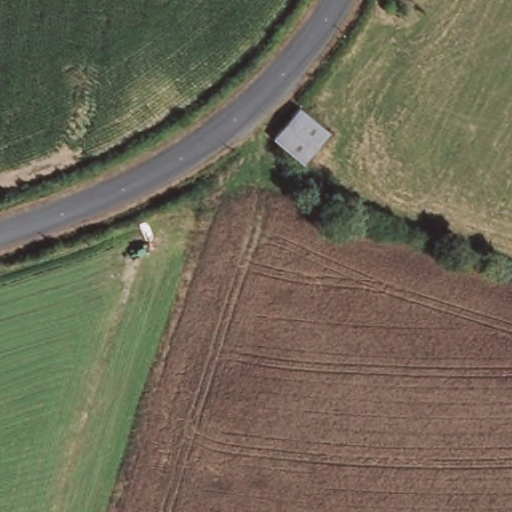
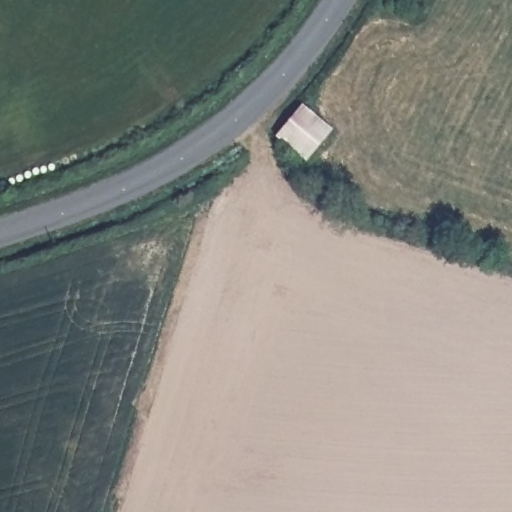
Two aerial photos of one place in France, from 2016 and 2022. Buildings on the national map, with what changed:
unchanged [(303,110),(329,139),(297,167),(291,160),(271,136),(290,121),(303,110)]

